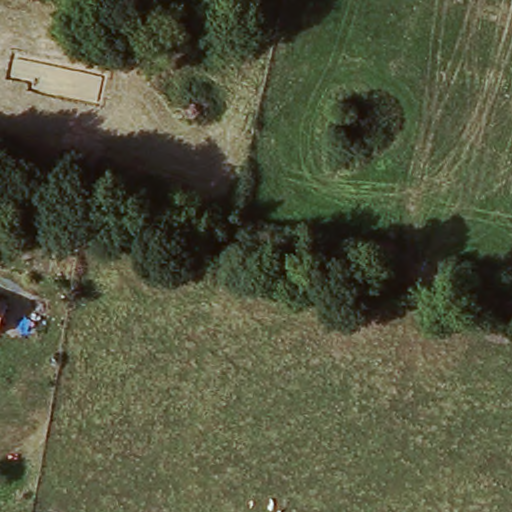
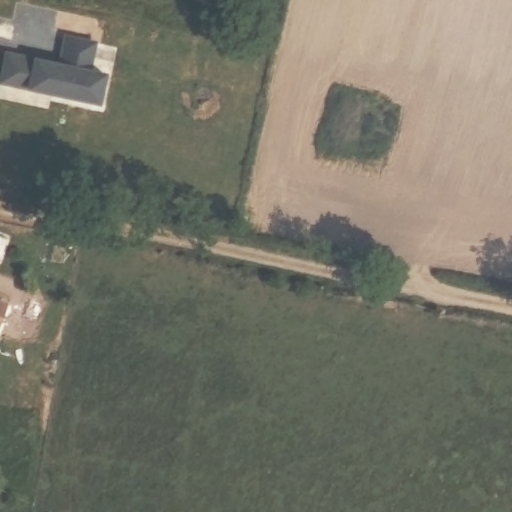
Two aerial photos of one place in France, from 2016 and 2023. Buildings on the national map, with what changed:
unchanged [(185,3),(186,0),(229,0),(220,18),(185,3)]
new [(13,56),(55,64),(63,31),(103,40),(95,73),(108,75),(102,104),(30,90),(1,84),(7,55),(13,56)]
unchanged [(8,306),(0,322),(0,303),(8,306)]

